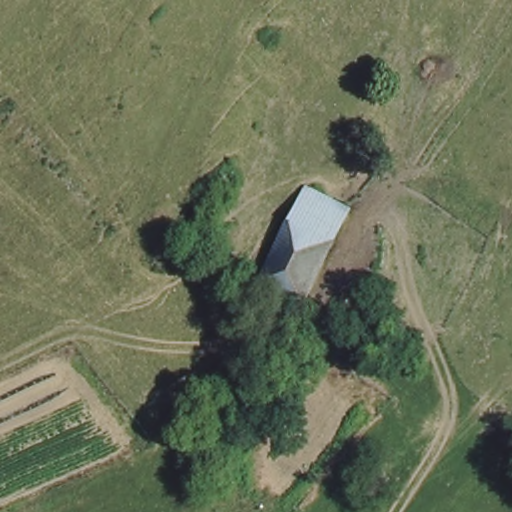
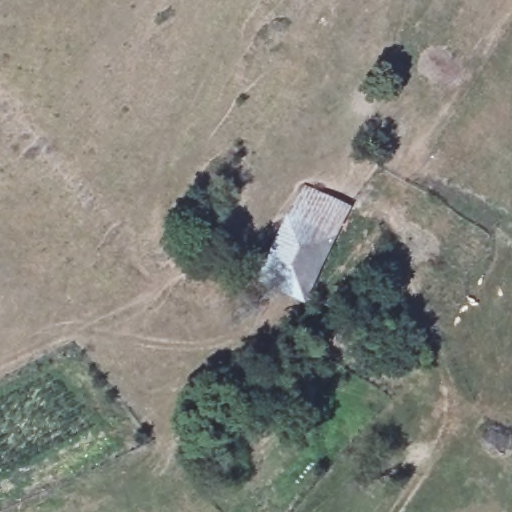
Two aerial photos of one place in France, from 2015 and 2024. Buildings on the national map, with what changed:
unchanged [(350,204),(331,237),(288,214),(301,190),(305,181),(350,204)]
unchanged [(331,237),(303,291),(266,270),(259,270),(288,214),(331,237)]

